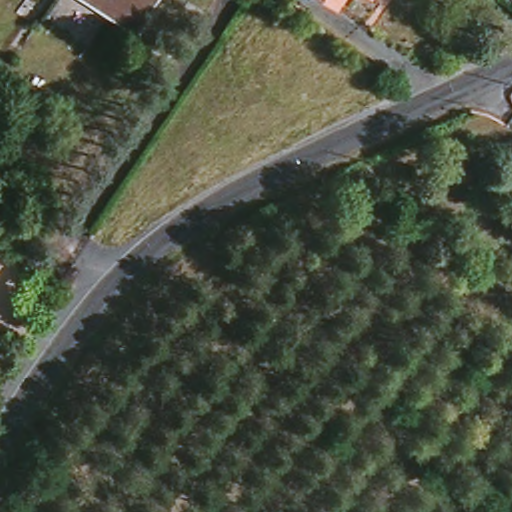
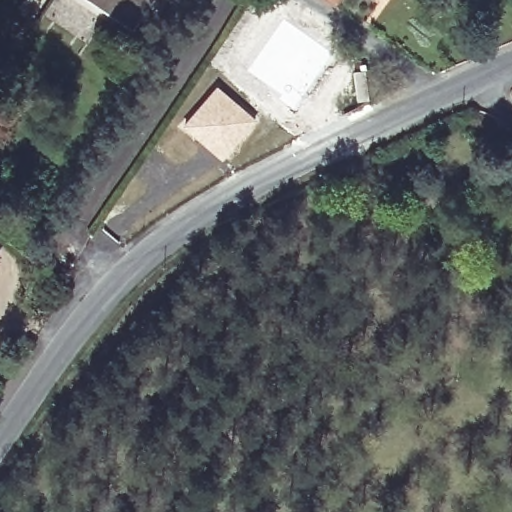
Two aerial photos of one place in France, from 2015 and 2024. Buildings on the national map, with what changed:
unchanged [(111,0),(162,0),(146,23),(111,0)]
new [(216,85),(257,122),(222,162),(180,126),(216,85)]
unchanged [(4,258),(0,264),(0,255),(4,258)]

